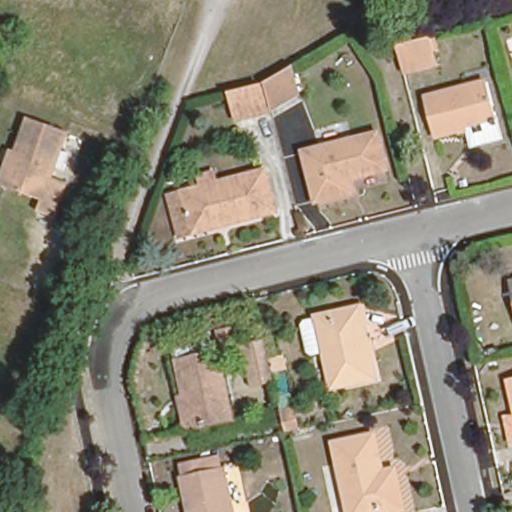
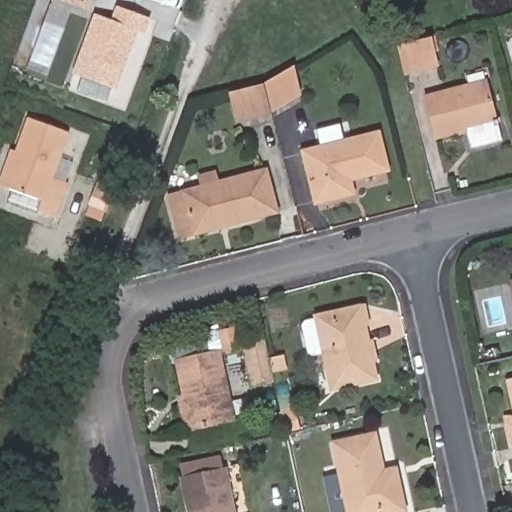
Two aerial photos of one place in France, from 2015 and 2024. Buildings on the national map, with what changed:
new [(144,35),(138,33),(117,91),(72,75),(93,14),(110,20),(116,6),(151,18),(144,35)]
unchanged [(400,69),(394,44),(422,35),(428,34),(431,47),(426,49),(429,61),(400,69)]
unchanged [(261,82),(292,64),(300,94),(272,110),(236,118),(229,89),(261,82)]
unchanged [(481,86),(490,123),(428,138),(419,103),(481,86)]
unchanged [(52,176),(67,183),(53,219),(36,212),(41,201),(7,188),(34,120),(69,133),(52,176)]
unchanged [(297,153),(371,135),(381,171),(342,181),(346,195),(310,204),(297,153)]
unchanged [(173,237),(162,194),(180,190),(197,186),(195,175),(211,172),(214,182),(263,170),(274,214),(228,225),(190,233),(173,237)]
unchanged [(512,280),(512,318),(505,281),(512,280)]
unchanged [(374,376),(332,386),(315,314),(358,304),(374,376)]
unchanged [(242,341),(224,345),(220,315),(252,307),(260,341),(276,337),(279,383),(254,392),(242,341)]
unchanged [(169,399),(174,398),(166,359),(205,351),(221,420),(186,428),(175,430),(169,399)]
unchanged [(512,378),(512,404),(507,379),(512,378)]
unchanged [(372,438),(381,477),(381,483),(369,485),(375,512),(335,512),(323,449),(372,438)]
unchanged [(173,470),(213,461),(215,471),(224,512),(182,512),(175,479),(173,470)]

